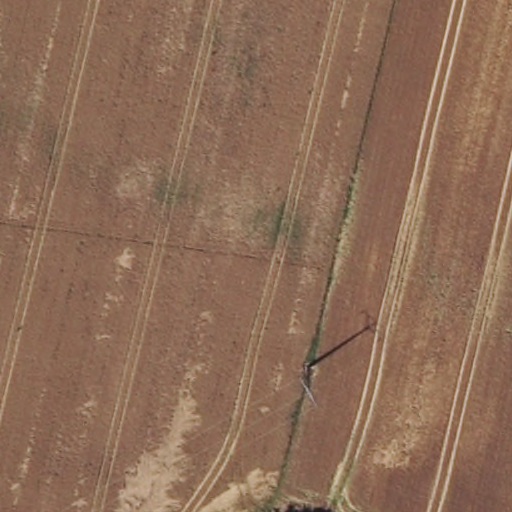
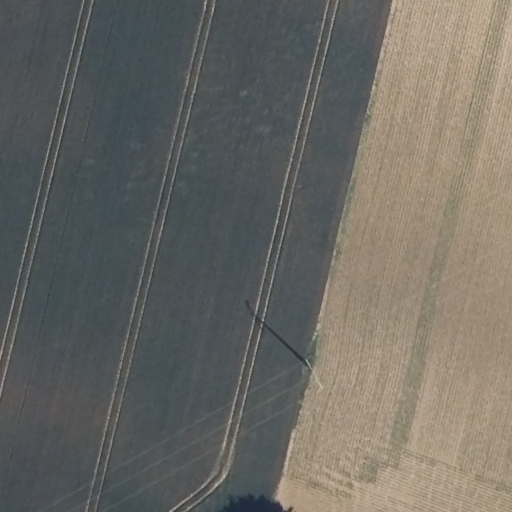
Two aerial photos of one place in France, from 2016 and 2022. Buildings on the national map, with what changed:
[]

